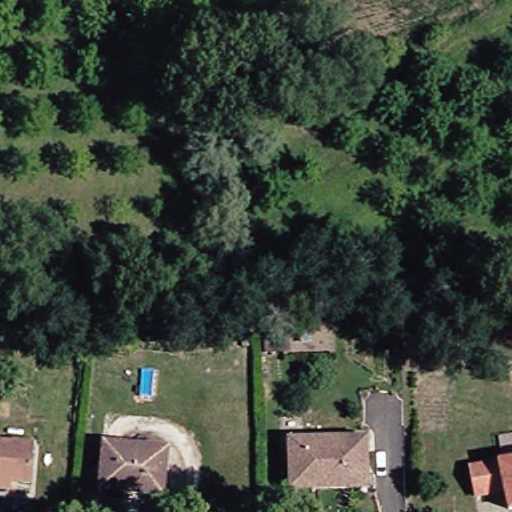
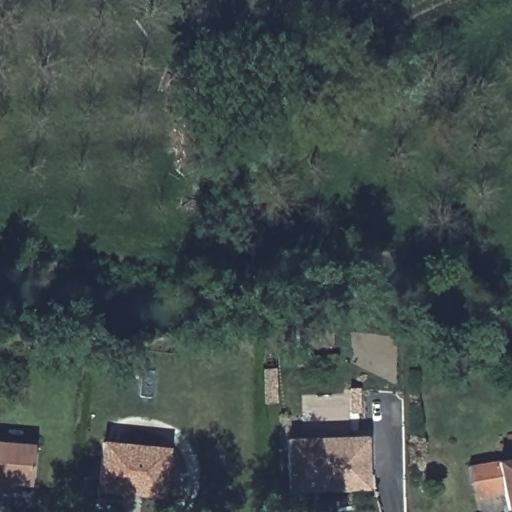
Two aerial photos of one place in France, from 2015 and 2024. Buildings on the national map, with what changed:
unchanged [(365,438),(367,490),(290,492),(288,440),(365,438)]
unchanged [(169,450),(164,498),(99,491),(104,443),(169,450)]
unchanged [(30,484),(11,483),(10,491),(0,491),(0,444),(33,447),(30,484)]
unchanged [(477,482),(475,460),(512,456),(512,506),(510,490),(479,493),(477,482)]

